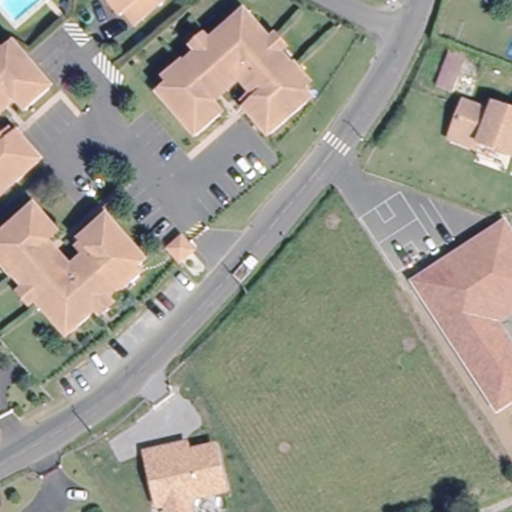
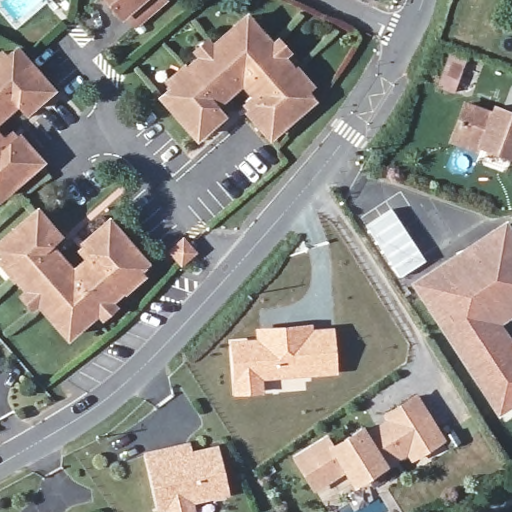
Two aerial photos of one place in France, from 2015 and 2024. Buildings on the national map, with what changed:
unchanged [(140,17),(130,5),(121,13),(110,0),(160,0),(140,17)]
unchanged [(246,78),(221,100),(218,102),(228,111),(203,133),(167,93),(177,84),(172,78),(188,64),(191,66),(205,53),(200,46),(210,37),(215,44),(240,22),(251,12),(260,22),(270,33),(276,28),(285,38),(280,44),(293,58),(294,57),(309,73),(303,79),(317,94),(276,131),(254,108),(257,105),(250,98),(258,91),(246,78)]
unchanged [(2,51),(8,56),(20,46),(56,85),(31,108),(22,99),(20,101),(0,119),(0,53),(2,51)]
unchanged [(447,93),(430,87),(445,48),(463,56),(447,93)]
unchanged [(460,107),(487,118),(490,111),(504,117),(512,119),(512,161),(473,145),(470,152),(446,142),(449,135),(460,107)]
unchanged [(7,137),(14,131),(21,138),(24,135),(46,158),(5,196),(0,190),(0,129),(7,137)]
unchanged [(58,323),(35,299),(29,304),(20,293),(25,288),(12,273),(10,275),(0,263),(0,253),(1,253),(0,251),(0,237),(31,208),(53,231),(44,239),(47,242),(70,267),(82,256),(75,249),(83,242),(80,239),(104,217),(142,258),(125,274),(130,279),(114,294),(112,292),(97,305),(102,311),(92,320),(86,315),(75,324),(67,332),(58,323)]
new [(391,209),(425,259),(398,278),(365,227),(391,209)]
unchanged [(512,232),(512,311),(498,319),(487,326),(447,260),(507,224),(512,232)]
unchanged [(178,252),(190,242),(200,252),(189,263),(178,252)]
unchanged [(487,326),(498,319),(512,341),(512,407),(497,417),(410,282),(447,260),(487,326)]
new [(254,337),(253,328),(312,322),(312,326),(333,325),(337,373),(263,380),(263,394),(232,396),(228,339),(254,337)]
new [(351,490),(342,476),(311,495),(292,465),(324,445),(329,453),(358,435),(362,442),(374,434),(385,427),(382,422),(412,403),(438,446),(408,464),(404,457),(392,464),(351,490)]
unchanged [(189,498),(192,510),(185,512),(169,512),(167,504),(160,506),(146,454),(177,445),(184,443),(187,452),(213,445),(225,489),(189,498)]

